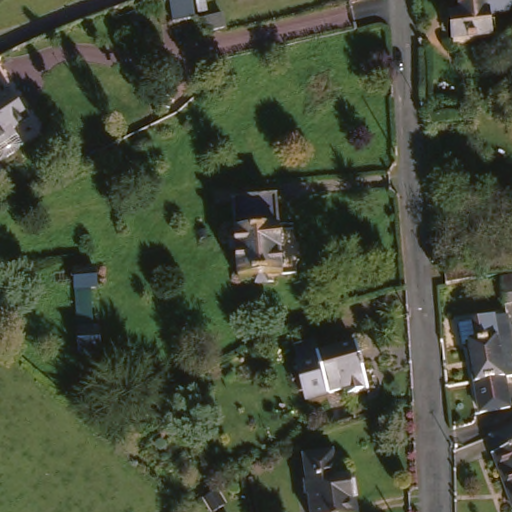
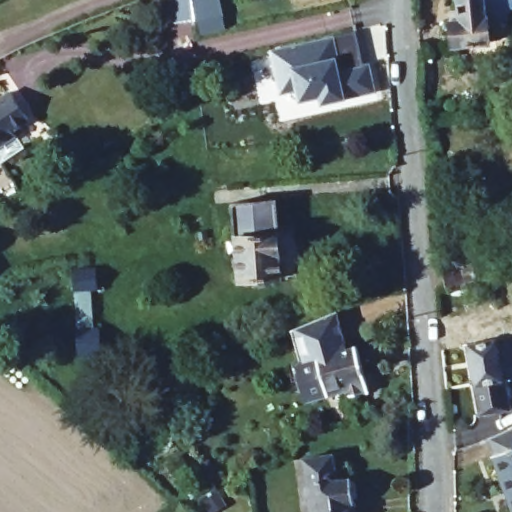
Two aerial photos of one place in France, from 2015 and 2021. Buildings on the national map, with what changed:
unchanged [(176,20),(173,0),(195,0),(197,15),(176,20)]
unchanged [(465,0),(512,0),(512,11),(496,12),(498,39),(459,41),(458,41),(457,15),(465,15),(465,0)]
unchanged [(224,10),(227,23),(203,30),(199,17),(224,10)]
new [(338,55),(334,57),(337,70),(367,63),(375,91),(321,104),(319,95),(300,100),(297,90),(279,94),(269,50),(332,36),(338,55)]
unchanged [(2,100),(16,89),(36,116),(21,127),(26,135),(2,152),(0,149),(0,96),(2,100)]
unchanged [(282,199),(289,275),(247,279),(241,202),(282,199)]
unchanged [(102,262),(104,284),(100,285),(102,322),(105,321),(107,346),(103,346),(105,388),(108,387),(109,407),(89,408),(82,264),(102,262)]
unchanged [(444,270),(473,265),(475,280),(447,286),(444,270)]
unchanged [(512,278),(512,304),(507,278),(512,278)]
unchanged [(473,340),(467,341),(464,319),(477,317),(500,315),(512,312),(512,340),(504,341),(507,357),(512,356),(512,375),(510,375),(512,384),(512,408),(484,412),(479,381),(473,340)]
unchanged [(304,362),(328,360),(327,348),(368,340),(377,378),(369,379),(370,390),(308,400),(304,362)]
unchanged [(512,426),(512,489),(493,435),(512,426)]
unchanged [(346,475),(355,473),(362,472),(369,512),(323,512),(320,491),(317,491),(315,476),(318,476),(313,452),(342,448),(346,475)]

